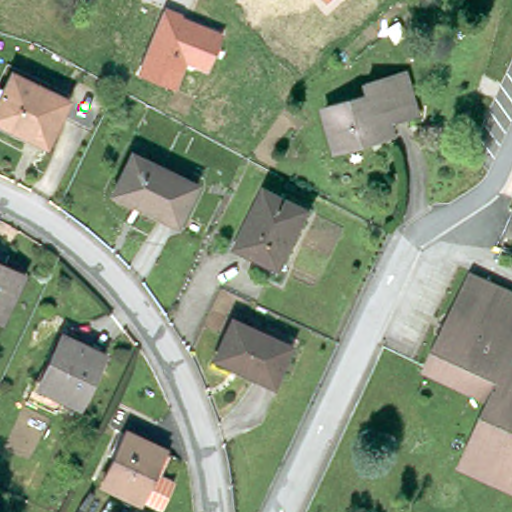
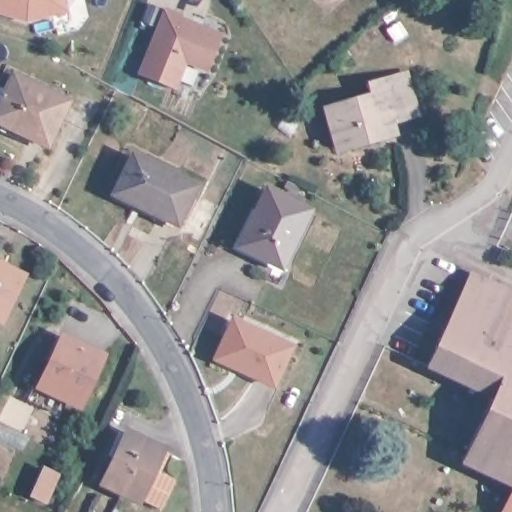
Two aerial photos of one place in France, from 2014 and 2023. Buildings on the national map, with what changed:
new [(69,14),(27,24),(0,16),(0,0),(66,0),(69,14)]
unchanged [(331,3),(329,0),(334,0),(331,3)]
unchanged [(183,13),(181,17),(223,32),(209,69),(188,63),(176,90),(137,75),(164,6),(183,13)]
unchanged [(389,136),(333,151),(322,108),(365,96),(362,85),(402,74),(413,118),(386,126),(389,136)]
unchanged [(0,125),(0,90),(1,88),(9,92),(16,78),(70,103),(49,148),(0,125)]
unchanged [(116,193),(133,156),(195,184),(177,222),(116,193)]
unchanged [(242,249),(268,193),(311,214),(284,269),(242,249)]
unchanged [(19,281),(0,319),(0,272),(19,281)]
unchanged [(487,394),(424,365),(468,272),(512,292),(512,359),(510,363),(512,364),(512,486),(456,461),(487,394)]
unchanged [(216,360),(232,325),(290,352),(273,386),(216,360)]
unchanged [(61,340),(99,358),(78,404),(39,386),(61,340)]
unchanged [(101,478),(125,431),(166,451),(156,471),(177,481),(164,507),(101,478)]

